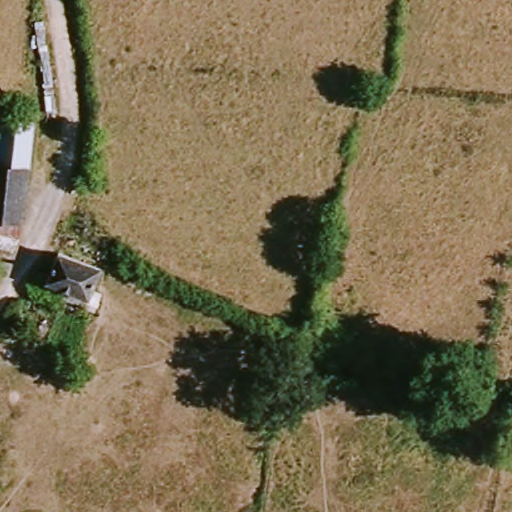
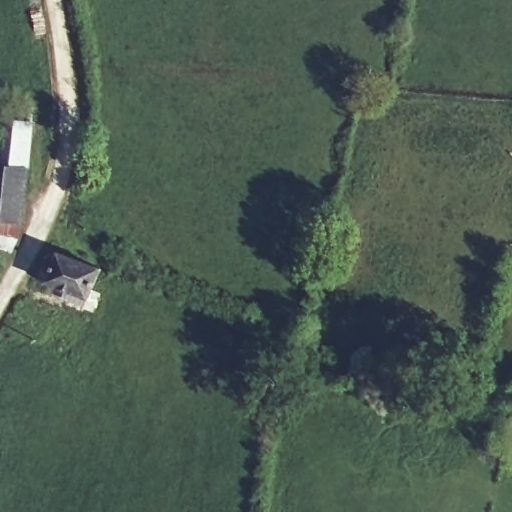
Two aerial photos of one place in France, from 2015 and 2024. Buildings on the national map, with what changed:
unchanged [(21,226),(18,234),(7,255),(0,253),(0,120),(26,124),(22,168),(26,169),(21,226)]
unchanged [(55,254),(96,272),(84,301),(42,284),(55,254)]

